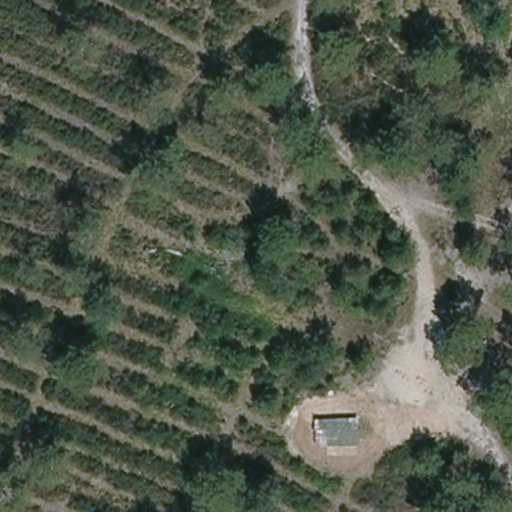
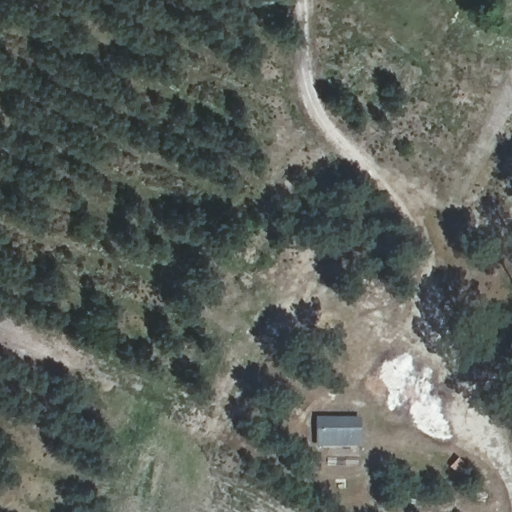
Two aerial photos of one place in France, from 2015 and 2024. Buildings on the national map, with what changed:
unchanged [(361,417),(360,449),(321,449),(321,416),(361,417)]

